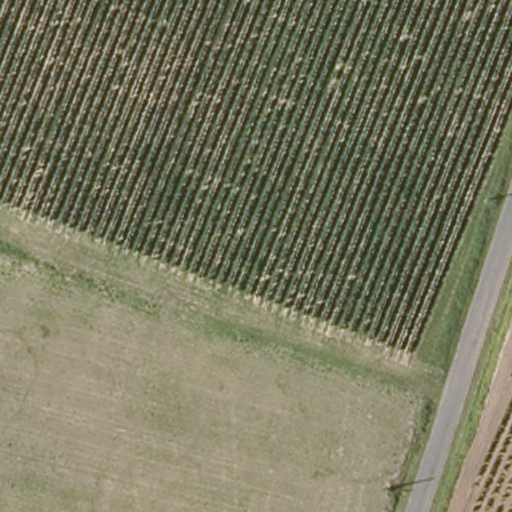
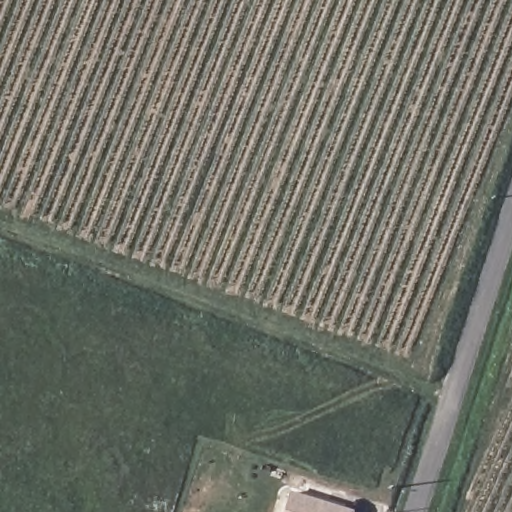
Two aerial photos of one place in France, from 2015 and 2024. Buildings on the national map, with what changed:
new [(288,492),(350,511),(350,512),(282,512),(288,492)]

